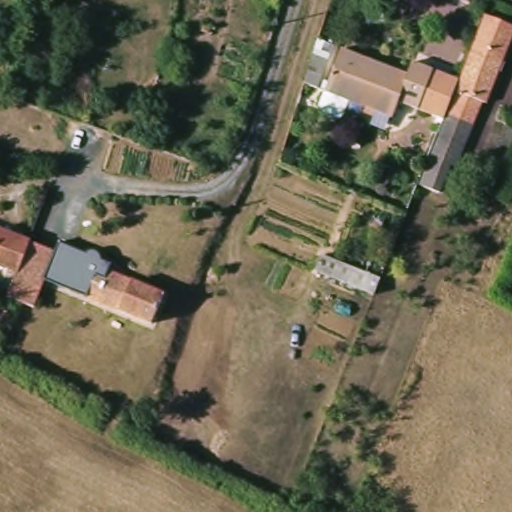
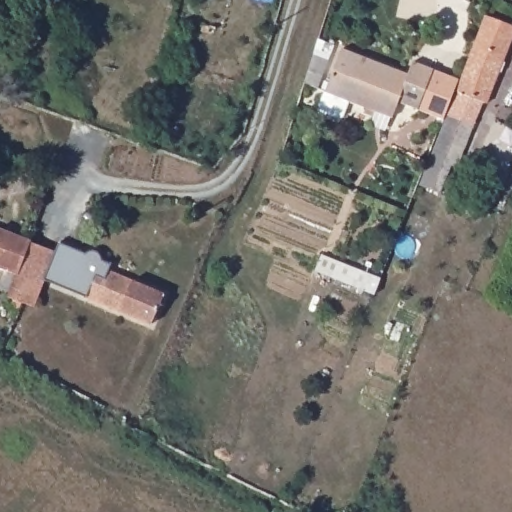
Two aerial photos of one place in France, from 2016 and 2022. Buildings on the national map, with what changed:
unchanged [(483,108),(477,106),(459,154),(451,152),(445,168),(426,160),(440,125),(455,85),(481,21),(510,33),(483,108)]
unchanged [(340,125),(323,118),(321,114),(326,98),(343,55),(408,79),(412,69),(455,85),(440,125),(399,109),(394,124),(350,107),(344,123),(340,125)]
unchanged [(36,243),(34,250),(25,274),(0,266),(0,230),(36,243)]
unchanged [(41,309),(31,305),(15,299),(25,274),(34,250),(60,259),(52,281),(41,309)]
unchanged [(65,261),(69,253),(172,290),(159,319),(104,299),(52,281),(60,259),(65,261)]
unchanged [(360,277),(354,290),(324,277),(329,264),(360,277)]

